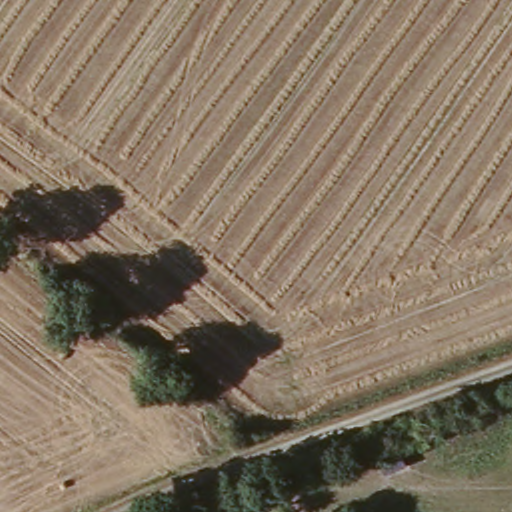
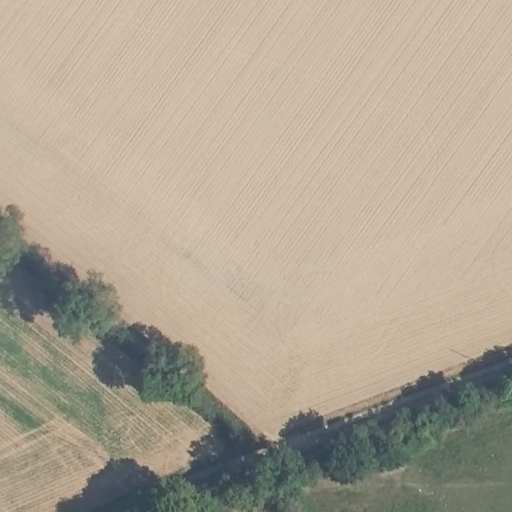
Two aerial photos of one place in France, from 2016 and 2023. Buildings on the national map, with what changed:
[]

